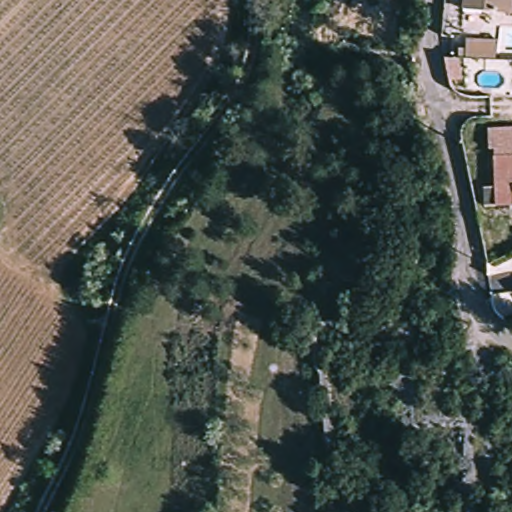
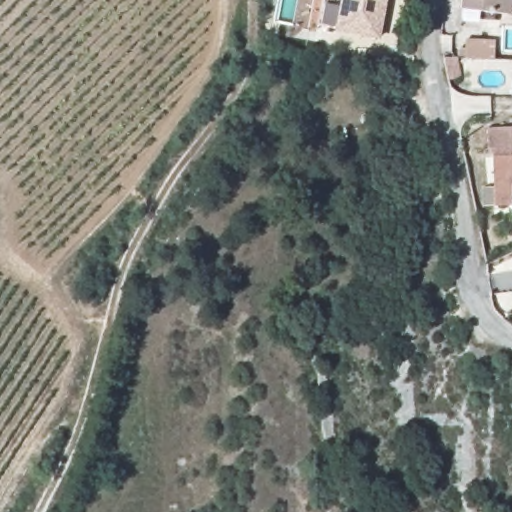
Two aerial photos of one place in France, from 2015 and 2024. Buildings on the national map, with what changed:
new [(384,0),(377,37),(315,23),(320,0),(384,0)]
unchanged [(459,4),(459,0),(507,0),(504,15),(492,13),(459,4)]
unchanged [(461,38),(496,41),(495,60),(462,57),(461,38)]
unchanged [(457,62),(459,62),(457,82),(443,81),(439,61),(457,62)]
unchanged [(483,204),(483,185),(495,185),(495,149),(490,149),(490,131),(512,133),(512,204),(483,204)]

